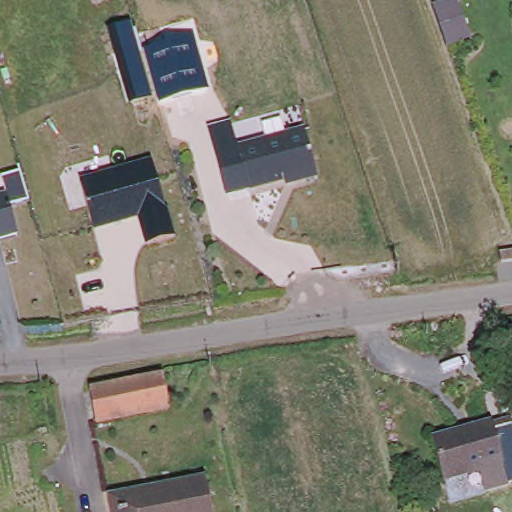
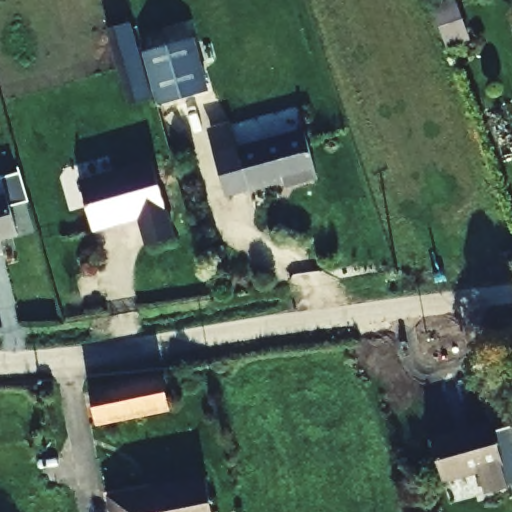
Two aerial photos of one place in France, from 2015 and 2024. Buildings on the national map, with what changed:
unchanged [(465,13),(479,51),(460,58),(446,20),(465,13)]
unchanged [(130,21),(151,99),(129,105),(107,27),(130,21)]
unchanged [(207,91),(160,106),(144,49),(192,37),(207,91)]
unchanged [(247,192),(227,200),(207,129),(230,122),(237,147),(247,192)]
unchanged [(318,178),(286,187),(284,183),(247,192),(237,147),(303,129),(318,178)]
unchanged [(173,235),(145,244),(139,219),(94,232),(79,177),(149,156),(173,235)]
unchanged [(2,178),(21,172),(29,201),(10,208),(17,234),(0,239),(0,196),(6,194),(2,178)]
unchanged [(90,388),(162,373),(170,403),(97,420),(90,388)]
unchanged [(505,466),(447,483),(436,443),(512,422),(512,489),(505,466)]
unchanged [(109,512),(107,504),(199,474),(210,512),(109,512)]

